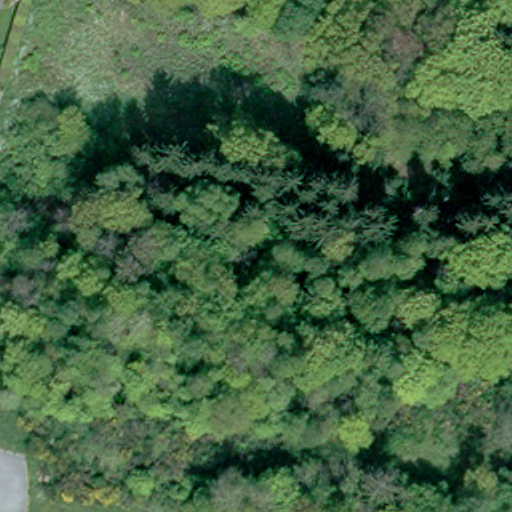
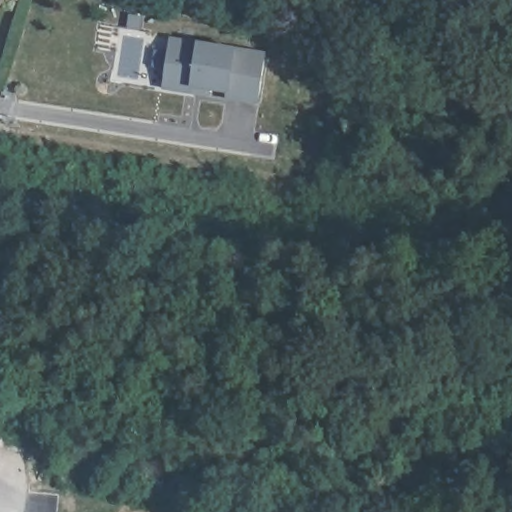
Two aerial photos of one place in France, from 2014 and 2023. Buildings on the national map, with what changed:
unchanged [(0,6),(0,0),(2,0),(0,6)]
new [(266,54),(258,105),(224,99),(224,92),(208,90),(206,97),(163,87),(171,37),(198,42),(236,49),(266,54)]

